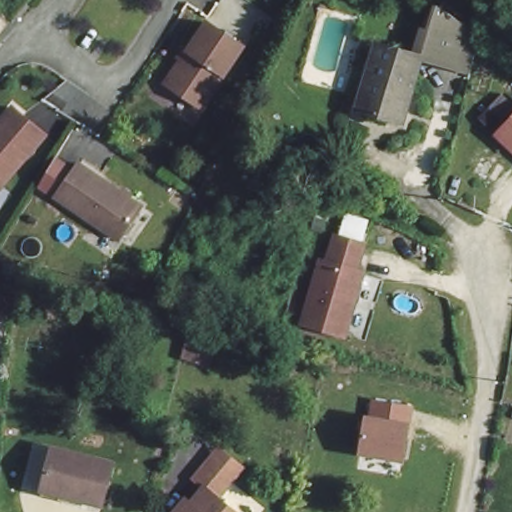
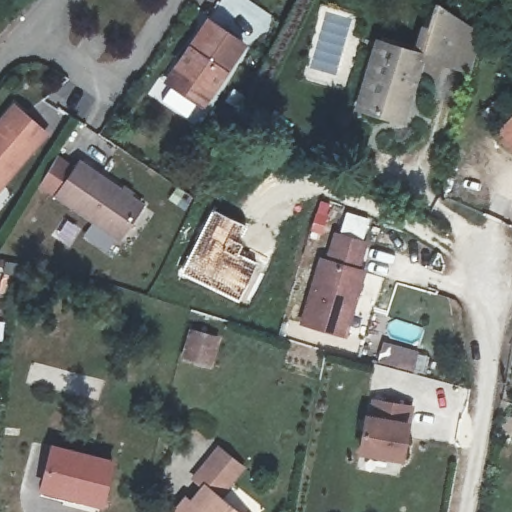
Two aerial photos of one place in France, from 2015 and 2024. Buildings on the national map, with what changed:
unchanged [(207,107),(172,85),(208,19),(241,41),(207,107)]
unchanged [(471,67),(420,59),(412,124),(367,117),(378,49),(412,53),(418,26),(474,35),(471,67)]
unchanged [(2,102),(35,125),(0,178),(0,104),(2,102)]
unchanged [(495,135),(512,114),(512,149),(495,135)]
unchanged [(121,232),(60,192),(81,157),(139,197),(121,232)]
new [(207,219),(214,225),(220,212),(237,221),(230,236),(243,242),(239,252),(262,263),(243,303),(180,274),(207,219)]
unchanged [(319,257),(325,259),(330,232),(358,237),(352,265),(359,266),(346,331),(306,323),(319,257)]
unchanged [(220,337),(213,367),(183,360),(189,332),(220,337)]
unchanged [(413,406),(405,461),(357,456),(363,415),(368,416),(371,401),(413,406)]
unchanged [(512,429),(512,438),(511,438),(512,429)]
unchanged [(40,495),(44,478),(51,446),(117,461),(109,502),(68,493),(67,500),(40,495)]
unchanged [(214,500),(228,512),(186,512),(202,492),(191,481),(217,451),(236,467),(214,500)]

